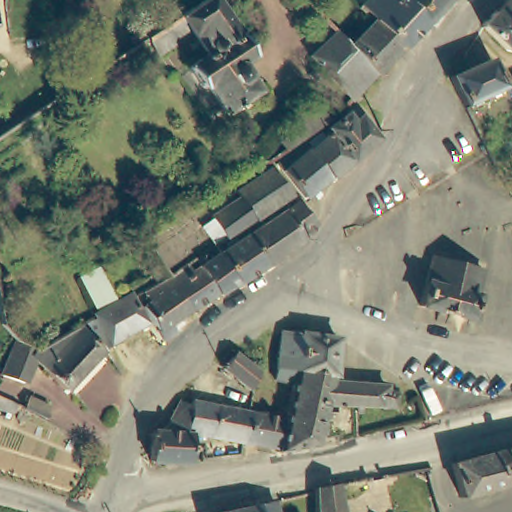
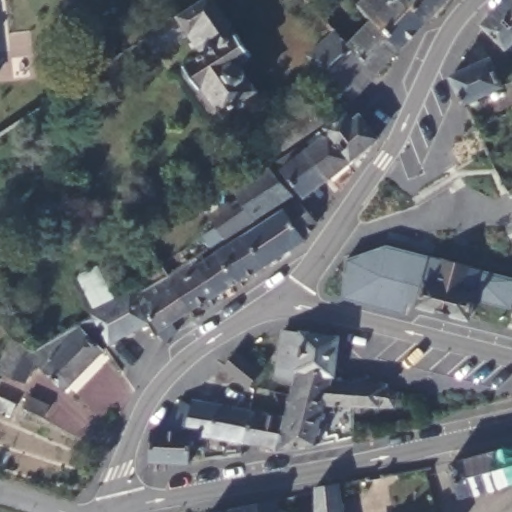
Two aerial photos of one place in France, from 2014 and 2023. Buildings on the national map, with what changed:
unchanged [(250,57),(237,66),(255,92),(222,114),(205,88),(199,92),(184,69),(206,54),(206,53),(205,50),(205,48),(206,45),(207,43),(209,41),(210,40),(200,25),(155,56),(147,43),(144,38),(202,0),(212,0),(250,57)]
unchanged [(425,16),(400,43),(358,2),(361,0),(408,0),(425,16)]
unchanged [(425,16),(408,0),(441,0),(425,16)]
unchanged [(491,9),(501,0),(512,0),(512,37),(503,45),(479,21),(491,9)]
unchanged [(400,43),(376,69),(334,28),(358,2),(400,43)]
unchanged [(309,51),(334,28),(376,69),(350,96),(309,51)]
unchanged [(488,58),(501,86),(461,104),(455,88),(449,76),(488,58)]
unchanged [(277,173),(305,151),(306,153),(309,151),(303,144),(325,129),(345,114),(351,122),(359,116),(375,139),(348,162),(327,179),(300,201),(294,193),(277,173)]
unchanged [(238,230),(222,241),(209,220),(238,201),(232,193),(267,170),(288,197),(277,205),(238,230)]
unchanged [(198,267),(219,253),(243,238),(239,232),(256,220),(260,226),(282,212),(295,203),(315,225),(302,243),(262,267),(237,282),(216,294),(189,310),(172,284),(198,267)]
new [(416,305),(408,302),(405,314),(343,297),(346,258),(387,245),(430,257),(416,305)]
unchanged [(465,318),(416,305),(430,257),(478,270),(465,318)]
new [(478,270),(512,278),(512,309),(470,299),(478,270)]
unchanged [(189,310),(169,322),(175,333),(162,341),(140,307),(146,303),(140,293),(167,276),(172,284),(189,310)]
unchanged [(145,325),(109,346),(92,316),(128,295),(145,325)]
unchanged [(24,386),(0,376),(0,372),(12,343),(35,353),(79,327),(102,350),(62,390),(34,361),(24,386)]
unchanged [(284,330),(307,334),(307,338),(302,337),(295,380),(295,383),(275,379),(284,330)]
unchanged [(384,390),(390,389),(398,389),(396,395),(392,405),(357,406),(345,405),(326,404),(292,395),(295,383),(295,380),(302,337),(307,338),(307,334),(314,335),(338,339),(331,382),(342,382),(342,380),(355,380),(355,384),(384,383),(384,390)]
unchanged [(238,357),(256,373),(245,389),(220,367),(233,352),(238,357)]
unchanged [(285,418),(292,395),(326,404),(316,444),(280,436),(285,418)]
unchanged [(25,397),(46,408),(41,419),(36,417),(20,408),(25,397)]
unchanged [(250,418),(245,442),(194,432),(188,431),(195,399),(251,412),(250,418)]
unchanged [(257,449),(258,445),(245,442),(250,418),(251,412),(285,418),(280,436),(277,448),(269,446),(268,451),(257,449)]
unchanged [(191,462),(153,459),(155,429),(188,431),(194,432),(191,462)]
unchanged [(447,463),(512,446),(512,483),(457,497),(447,463)]
unchanged [(312,488),(333,483),(334,483),(340,512),(312,512),(312,491),(312,488)]
unchanged [(277,512),(206,512),(274,499),(277,512)]

